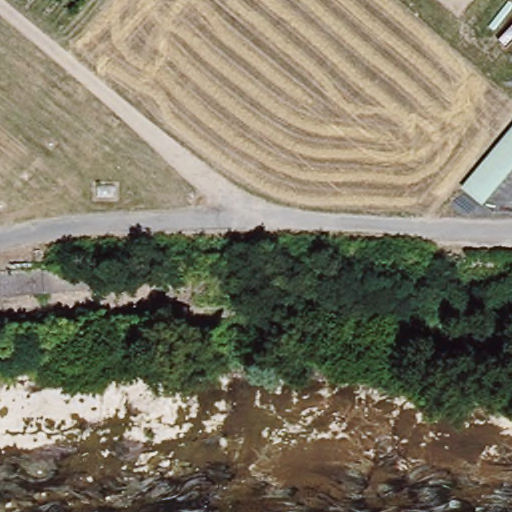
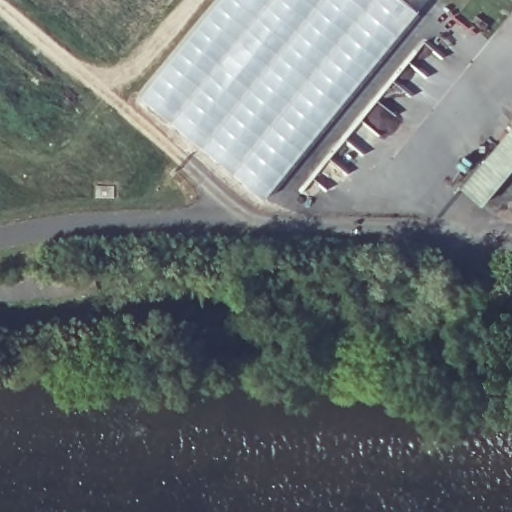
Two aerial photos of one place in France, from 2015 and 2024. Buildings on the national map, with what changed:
new [(141,97),(220,0),(402,0),(417,12),(264,196),(141,97)]
unchanged [(512,127),(512,168),(481,205),(461,187),(512,127)]
demolished [(24,280),(190,272),(190,305),(28,318),(24,280)]

